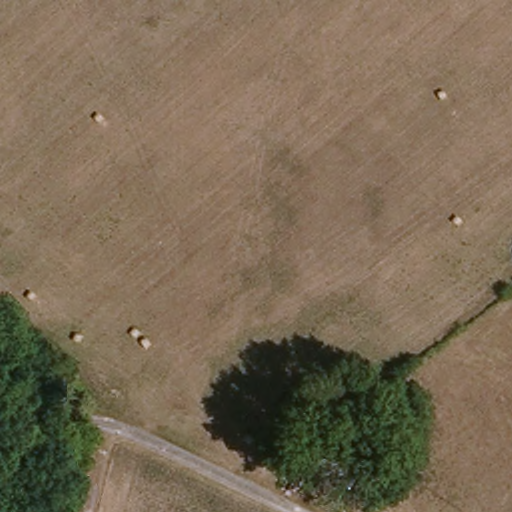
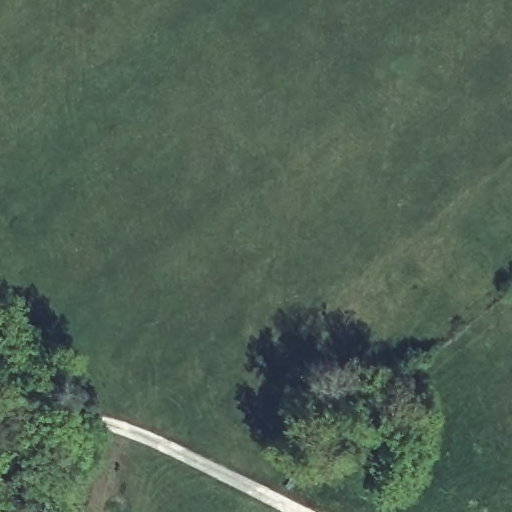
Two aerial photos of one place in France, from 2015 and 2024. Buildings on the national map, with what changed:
[]

